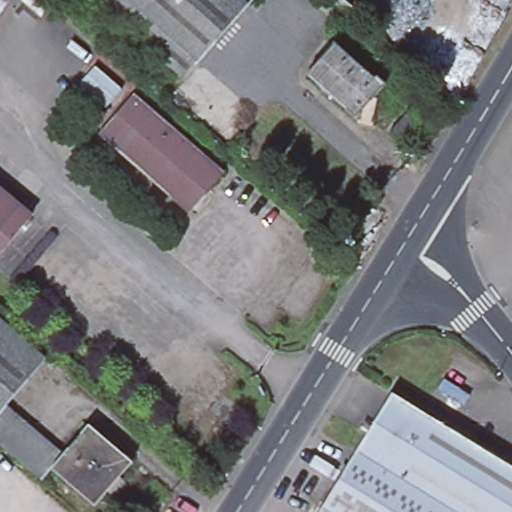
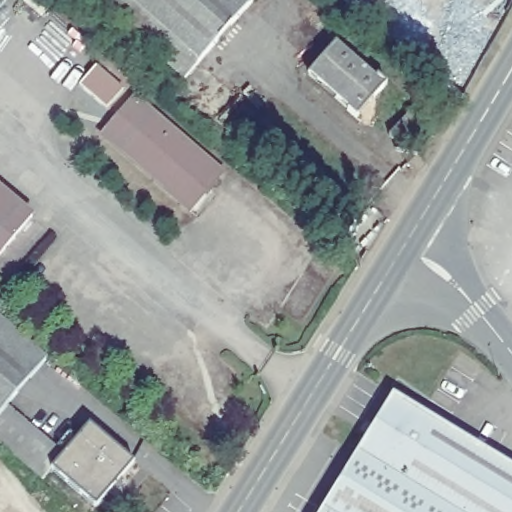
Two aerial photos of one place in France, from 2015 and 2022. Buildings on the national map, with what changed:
unchanged [(143,49),(88,0),(253,0),(245,10),(194,68),(181,83),(143,49)]
unchanged [(308,79),(335,48),(374,83),(377,80),(386,89),(356,122),(308,79)]
unchanged [(137,102),(221,175),(189,212),(105,139),(137,102)]
unchanged [(410,105),(428,121),(401,151),(383,135),(410,105)]
unchanged [(0,259),(0,184),(37,214),(0,259)]
unchanged [(10,402),(0,414),(0,313),(50,355),(10,402)]
unchanged [(512,464),(512,512),(320,512),(393,392),(512,464)]
unchanged [(54,466),(45,477),(0,440),(0,414),(10,402),(67,450),(54,466)]
unchanged [(91,423),(135,460),(97,503),(54,466),(67,450),(91,423)]

